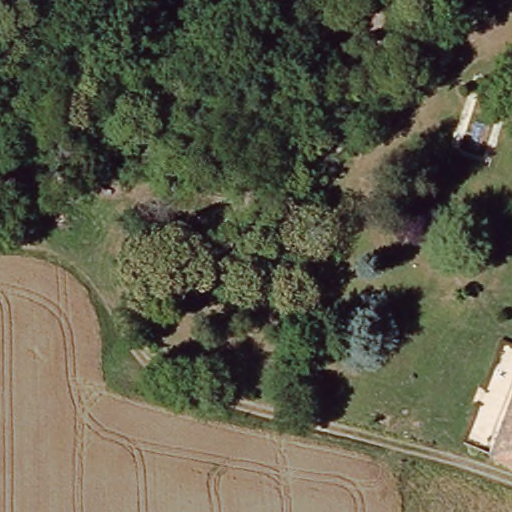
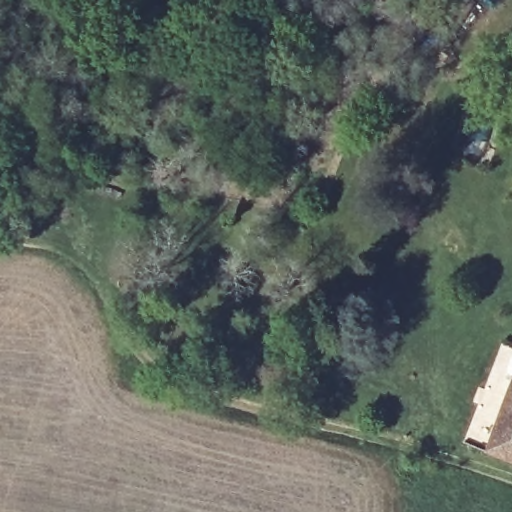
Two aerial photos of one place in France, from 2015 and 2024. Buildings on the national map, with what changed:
unchanged [(376,82),(418,78),(420,109),(378,112),(376,99),(376,82)]
unchanged [(486,459),(512,391),(512,469),(486,459)]

